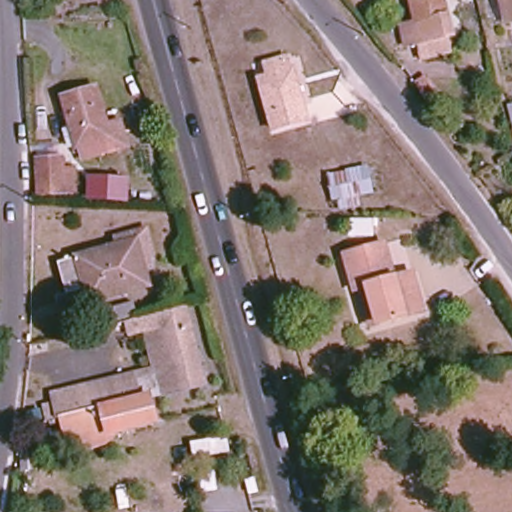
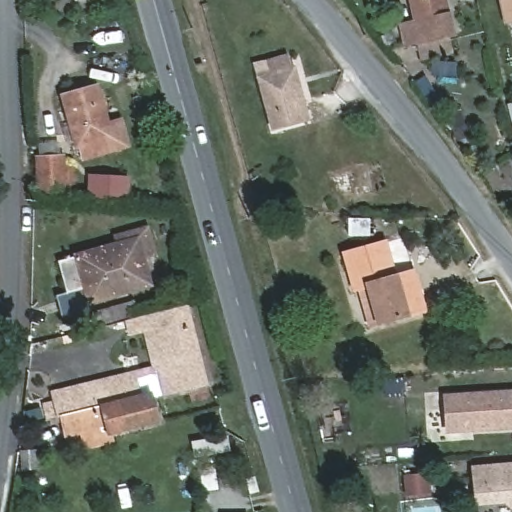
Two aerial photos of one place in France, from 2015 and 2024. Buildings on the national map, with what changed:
unchanged [(403,29),(418,26),(413,0),(446,0),(450,19),(454,39),(407,49),(403,29)]
unchanged [(512,0),(512,20),(505,22),(500,0),(512,0)]
unchanged [(256,79),(267,77),(263,63),(282,58),(287,71),(291,70),(305,119),(271,129),(256,79)]
unchanged [(132,145),(107,152),(84,159),(80,148),(72,149),(67,129),(75,127),(66,97),(100,88),(111,130),(127,125),(132,145)]
unchanged [(512,105),(512,120),(508,105),(512,105)]
unchanged [(36,166),(61,165),(62,198),(37,199),(36,166)]
unchanged [(342,200),(336,202),(335,199),(329,199),(328,196),(325,197),(321,177),(370,165),(377,194),(360,198),(362,205),(343,209),(342,200)]
new [(123,198),(114,198),(88,197),(89,175),(115,177),(124,177),(123,198)]
unchanged [(57,297),(65,294),(57,263),(136,240),(149,287),(88,304),(89,309),(62,316),(57,297)]
unchanged [(361,294),(358,294),(347,257),(389,244),(399,277),(417,272),(427,310),(380,324),(371,327),(361,294)]
unchanged [(93,314),(127,304),(131,317),(97,325),(93,314)]
unchanged [(165,419),(121,431),(108,434),(111,444),(86,451),(81,433),(77,434),(65,437),(60,416),(49,418),(46,403),(56,401),(67,398),(66,390),(116,377),(152,368),(144,335),(143,329),(127,333),(125,322),(162,312),(183,307),(201,383),(160,394),(165,419)]
new [(441,394),(512,389),(512,429),(443,434),(441,394)]
unchanged [(26,447),(40,446),(41,464),(26,465),(26,447)]
new [(472,506),(470,466),(512,462),(512,511),(503,503),(472,506)]

